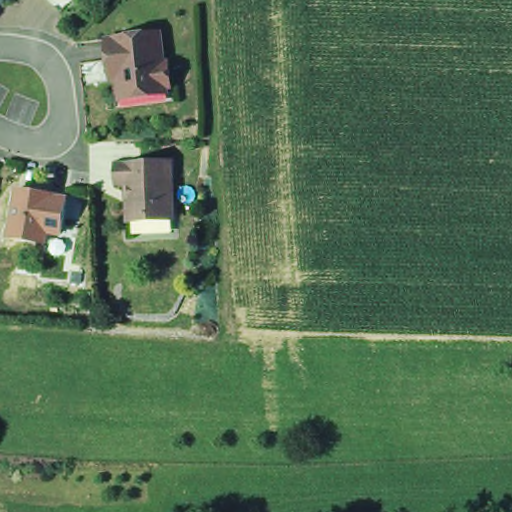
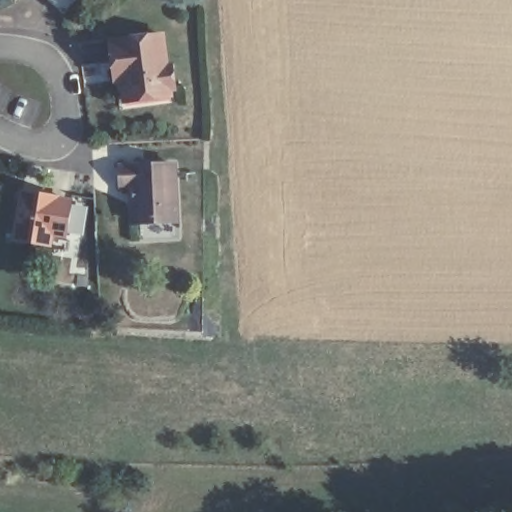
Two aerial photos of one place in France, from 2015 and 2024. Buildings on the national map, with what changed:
unchanged [(59,0),(65,0),(62,3),(59,0)]
unchanged [(107,49),(159,43),(163,75),(165,74),(169,95),(169,101),(115,107),(110,70),(107,49)]
unchanged [(157,228),(135,229),(134,190),(125,190),(125,174),(178,172),(180,221),(180,227),(157,228)]
unchanged [(71,199),(65,234),(50,231),(49,243),(14,239),(22,188),(40,191),(56,193),(55,197),(71,199)]

